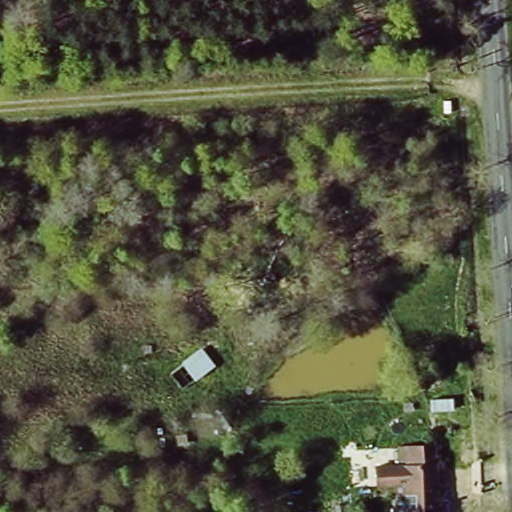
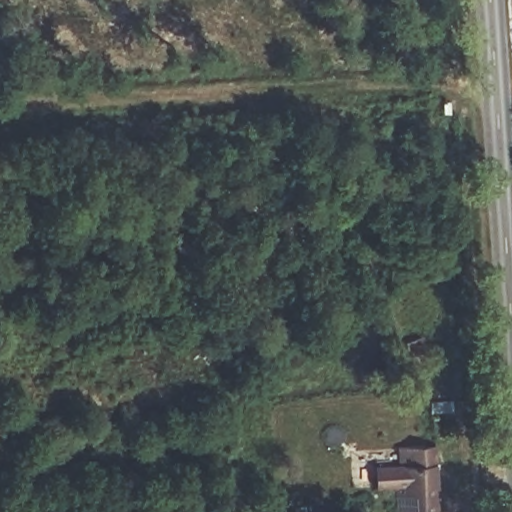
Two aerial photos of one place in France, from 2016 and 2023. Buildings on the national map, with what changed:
unchanged [(406,461),(439,460),(443,512),(400,512),(399,500),(379,502),(377,482),(397,481),(407,480),(406,461)]

